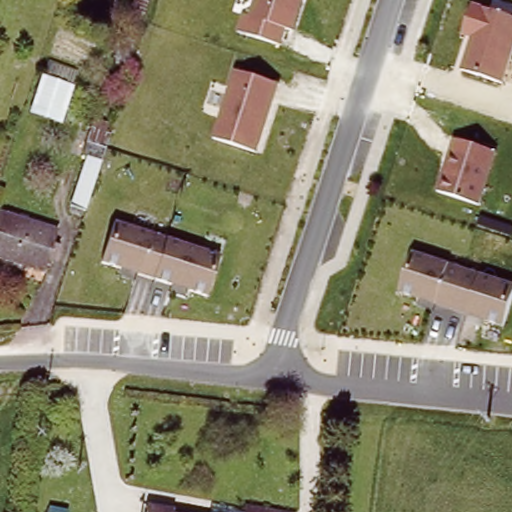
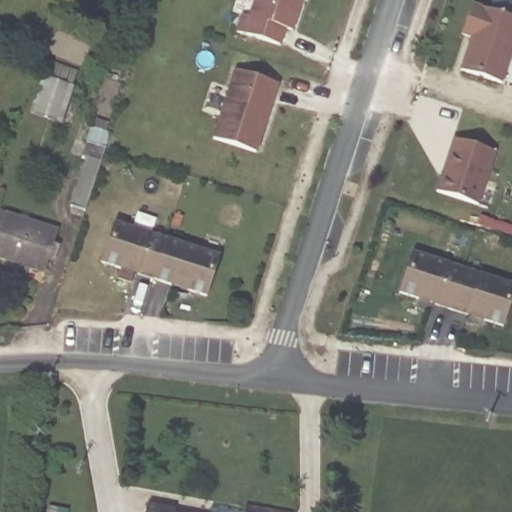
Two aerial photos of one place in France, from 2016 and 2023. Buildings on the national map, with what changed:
unchanged [(286,30),(282,46),(238,31),(243,9),(253,11),(256,0),(304,0),(295,31),(286,30)]
unchanged [(512,56),(504,83),(461,71),(469,40),(463,37),(473,1),(512,13),(512,56)]
unchanged [(279,81),(258,152),(213,138),(233,69),(279,81)]
unchanged [(61,120),(36,111),(46,77),(73,85),(61,120)]
unchanged [(88,209),(75,205),(93,151),(86,149),(94,123),(114,129),(88,209)]
unchanged [(496,150),(480,203),(438,191),(452,138),(496,150)]
unchanged [(59,234),(56,242),(64,245),(59,258),(51,255),(45,273),(0,257),(0,212),(59,234)]
unchanged [(221,255),(207,296),(100,264),(115,221),(221,255)]
unchanged [(512,299),(503,326),(398,293),(411,250),(512,282),(512,299)]
unchanged [(49,507),(68,511),(68,512),(49,512),(49,507)]

